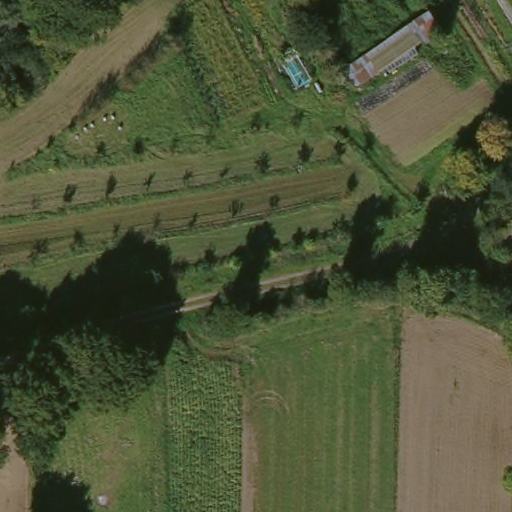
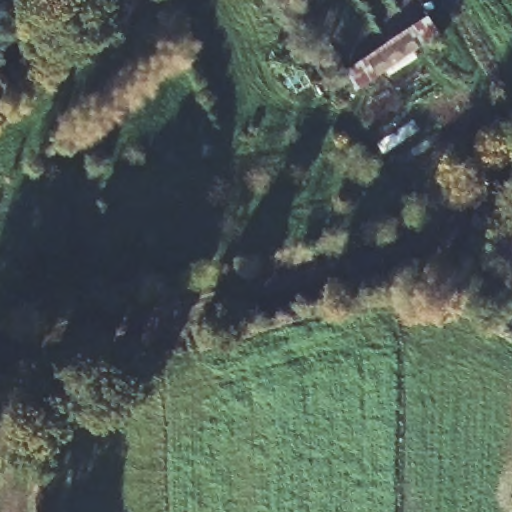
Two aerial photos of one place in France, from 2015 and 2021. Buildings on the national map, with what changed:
unchanged [(358,91),(345,69),(433,7),(448,31),(358,91)]
unchanged [(512,230),(512,252),(501,242),(512,230)]

